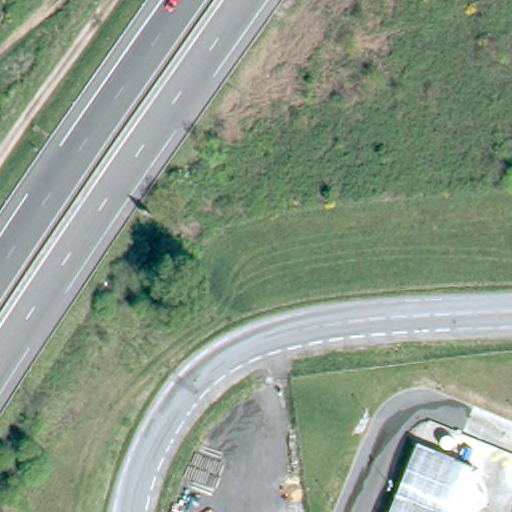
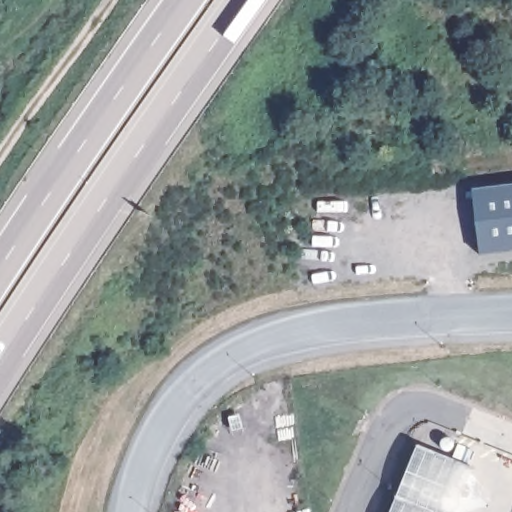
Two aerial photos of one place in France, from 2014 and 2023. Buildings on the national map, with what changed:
new [(481,252),(473,191),(512,186),(512,248),(481,252)]
unchanged [(457,512),(391,512),(417,448),(474,471),(457,512)]

